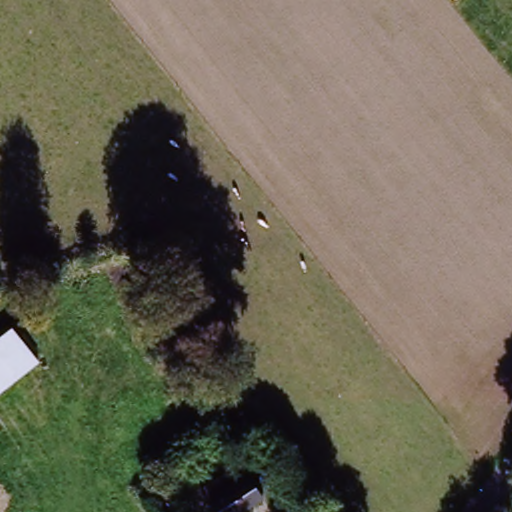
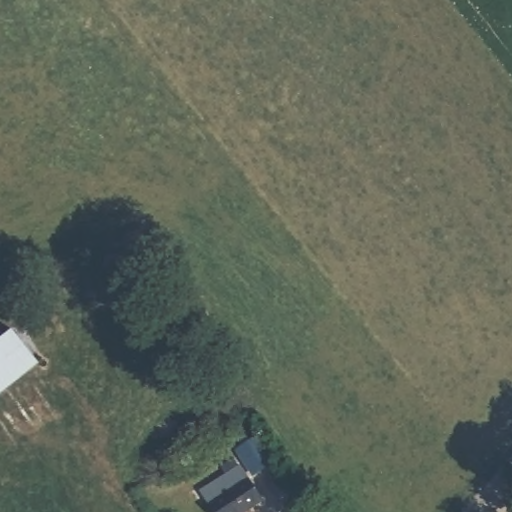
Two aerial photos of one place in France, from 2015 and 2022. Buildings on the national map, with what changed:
unchanged [(12,332),(37,365),(0,395),(0,342),(12,332)]
unchanged [(233,470),(250,493),(225,512),(213,512),(200,496),(233,470)]

